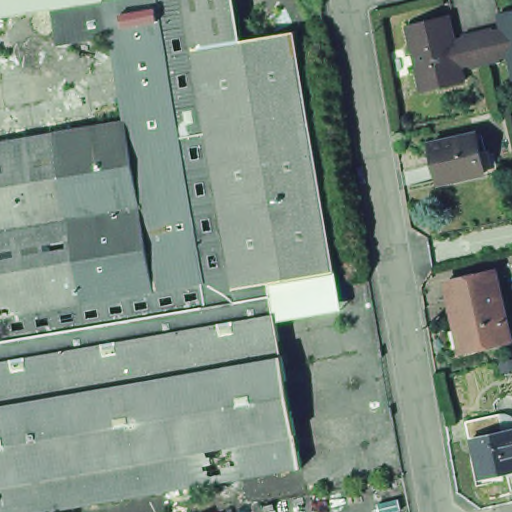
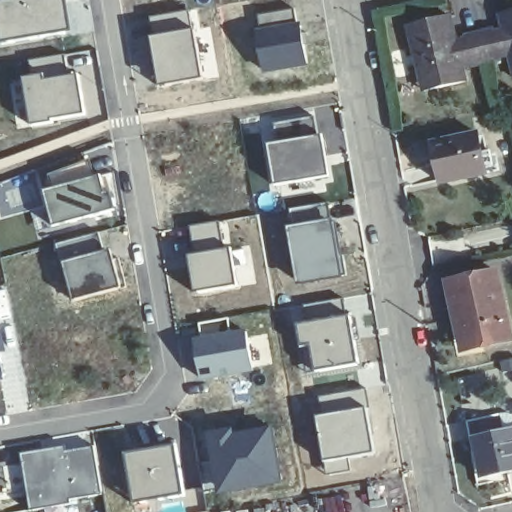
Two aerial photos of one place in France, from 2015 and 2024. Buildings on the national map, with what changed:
demolished [(0,0),(85,0),(0,14),(0,0)]
new [(63,0),(69,33),(0,42),(0,0),(3,0),(63,0)]
demolished [(0,141),(0,140),(0,137),(0,129),(26,124),(29,136),(51,133),(78,300),(153,288),(126,120),(118,71),(107,0),(236,0),(239,21),(242,39),(296,29),(298,41),(306,90),(333,259),(335,271),(336,273),(270,284),(271,292),(273,302),(274,313),(0,359),(0,141)]
unchanged [(512,62),(469,70),(473,84),(423,93),(409,23),(453,14),(458,39),(500,31),(496,11),(512,8),(512,65),(512,62)]
new [(296,9),(304,65),(263,71),(256,16),(296,9)]
new [(191,11),(201,81),(159,87),(148,20),(191,11)]
new [(39,71),(40,80),(75,73),(83,115),(28,124),(18,77),(39,71)]
demolished [(51,133),(93,125),(126,120),(153,288),(78,300),(51,133)]
new [(320,135),(324,174),(271,183),(265,144),(320,135)]
unchanged [(439,185),(430,146),(475,136),(479,154),(487,151),(493,174),(439,185)]
new [(103,194),(113,192),(118,214),(48,228),(39,189),(101,175),(103,194)]
new [(332,221),(338,275),(293,281),(284,227),(332,221)]
new [(221,222),(223,248),(228,248),(233,288),(198,293),(189,227),(221,222)]
new [(97,237),(101,253),(108,252),(116,289),(68,302),(54,244),(97,237)]
unchanged [(473,342),(467,319),(461,320),(451,275),(499,264),(512,325),(512,333),(473,342)]
demolished [(231,443),(173,454),(178,484),(32,509),(32,512),(0,512),(0,359),(274,313),(276,321),(282,358),(221,367),(231,443)]
new [(351,317),(357,364),(316,368),(312,343),(304,342),(299,323),(351,317)]
new [(248,328),(254,375),(198,384),(193,337),(248,328)]
demolished [(299,464),(297,465),(296,464),(178,484),(173,454),(231,443),(221,367),(282,358),(299,464)]
new [(323,416),(319,398),(369,391),(371,402),(373,401),(374,407),(368,408),(376,453),(349,457),(351,471),(328,475),(317,417),(323,416)]
unchanged [(481,463),(476,441),(472,441),(469,424),(502,417),(506,434),(512,433),(512,474),(491,479),(484,481),(481,463)]
new [(219,459),(215,436),(233,432),(234,434),(276,428),(284,479),(204,493),(199,463),(219,459)]
new [(183,498),(137,503),(128,453),(176,444),(183,498)]
new [(99,498),(26,508),(19,456),(60,448),(61,454),(93,445),(99,498)]

